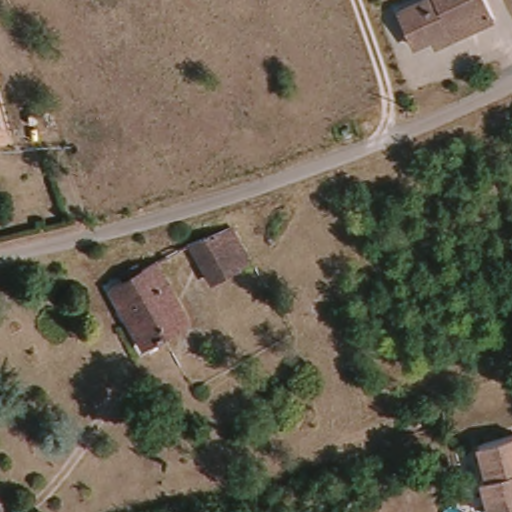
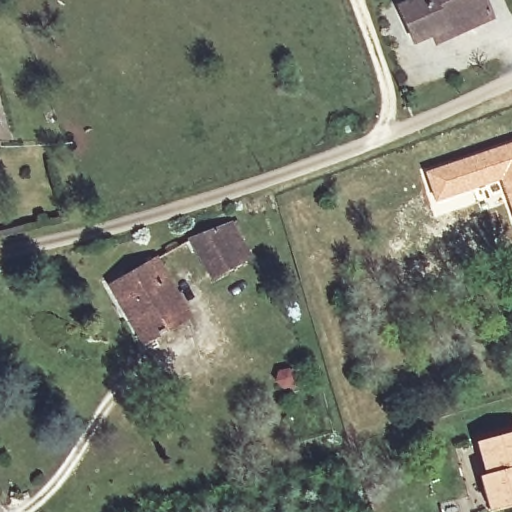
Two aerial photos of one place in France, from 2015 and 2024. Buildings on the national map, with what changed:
unchanged [(435,45),(432,35),(413,43),(398,8),(416,0),(483,0),(485,6),(492,19),(435,45)]
new [(512,222),(502,197),(494,199),(495,202),(487,206),(485,200),(437,215),(423,170),(512,140),(512,222)]
unchanged [(251,257),(213,279),(190,240),(232,224),(251,257)]
unchanged [(132,323),(110,286),(156,260),(167,280),(190,319),(174,327),(148,342),(143,345),(132,323)]
unchanged [(478,477),(485,476),(475,443),(512,433),(512,505),(487,512),(478,477)]

